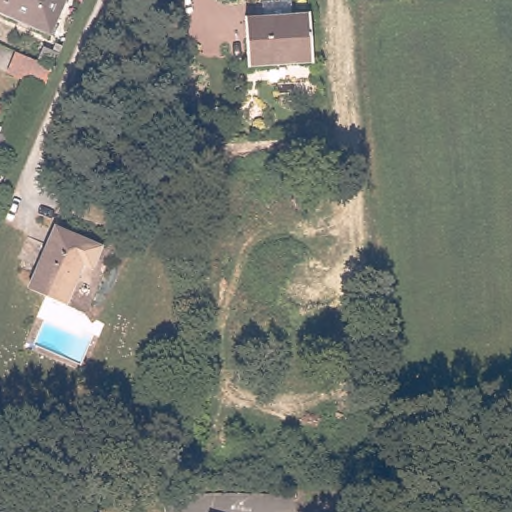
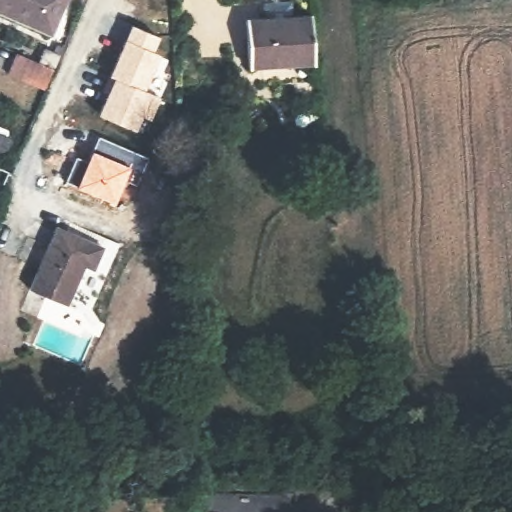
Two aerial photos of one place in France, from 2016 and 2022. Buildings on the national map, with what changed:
unchanged [(0,6),(0,0),(70,0),(57,30),(0,6)]
unchanged [(250,19),(268,17),(268,1),(295,0),(296,15),(316,15),(320,62),(254,66),(250,19)]
new [(113,78),(108,75),(130,25),(160,36),(154,52),(159,55),(144,90),(150,94),(160,97),(151,122),(140,118),(135,130),(95,113),(113,78)]
unchanged [(21,47),(45,57),(51,43),(65,49),(59,62),(50,85),(12,68),(21,47)]
unchanged [(8,152),(0,149),(0,126),(16,132),(8,152)]
new [(78,144),(85,146),(90,134),(127,147),(109,191),(66,175),(78,144)]
unchanged [(108,242),(98,263),(86,258),(83,267),(85,268),(71,299),(35,282),(61,221),(108,242)]
unchanged [(214,510),(219,512),(214,512),(214,510)]

